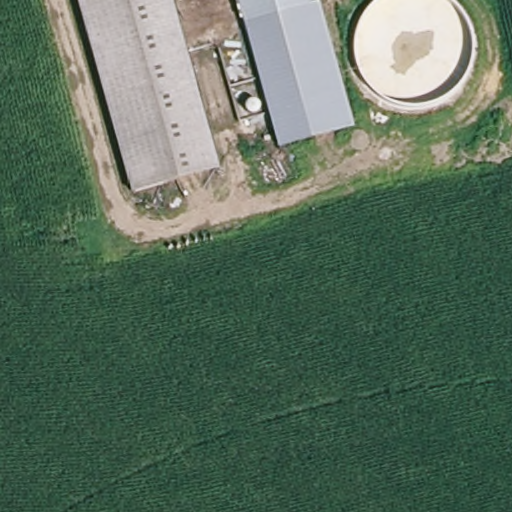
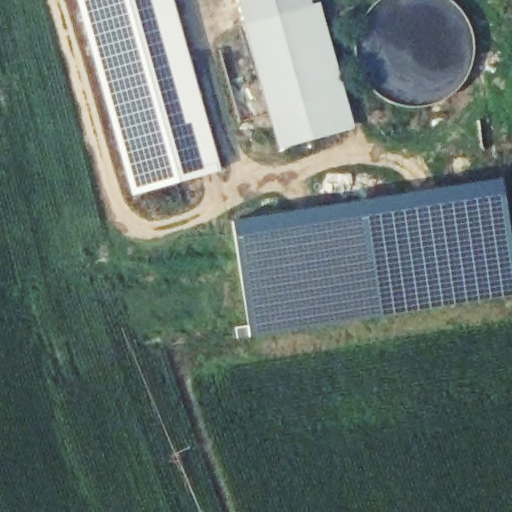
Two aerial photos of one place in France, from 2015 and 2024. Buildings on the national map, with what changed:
unchanged [(80,0),(144,0),(173,124),(110,134),(80,0)]
unchanged [(144,0),(172,0),(200,120),(173,124),(144,0)]
unchanged [(329,100),(336,130),(274,145),(266,110),(247,27),(240,0),(306,0),(309,12),(329,100)]
unchanged [(211,172),(185,179),(173,124),(200,120),(211,172)]
unchanged [(185,179),(124,193),(110,134),(173,124),(185,179)]
new [(251,340),(231,220),(499,177),(512,258),(512,298),(251,340)]

